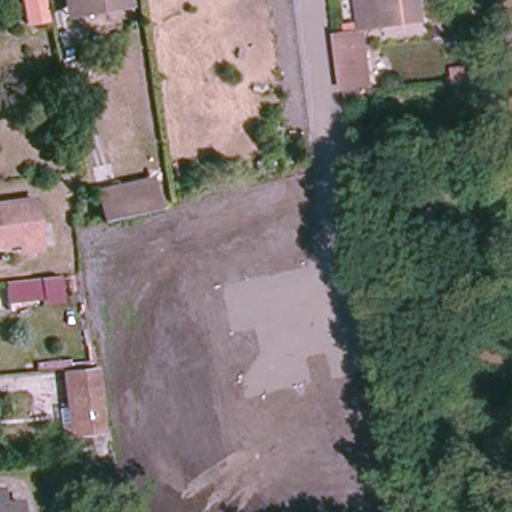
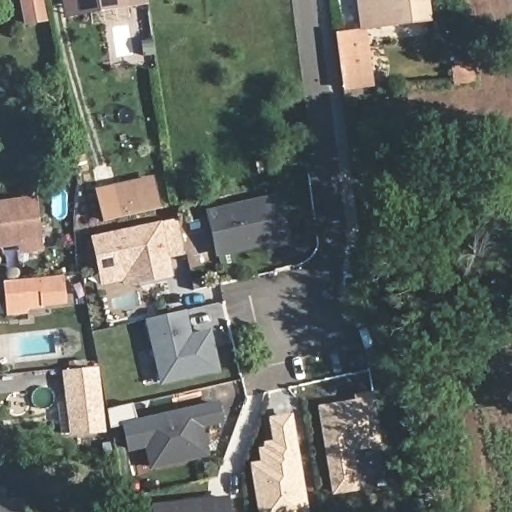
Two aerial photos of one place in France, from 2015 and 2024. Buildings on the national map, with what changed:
unchanged [(21,0),(40,0),(44,22),(25,25),(21,0)]
unchanged [(68,19),(65,0),(128,0),(129,9),(68,19)]
unchanged [(363,29),(361,29),(356,0),(424,0),(426,22),(363,29)]
unchanged [(370,89),(344,92),(342,77),(338,51),(336,33),(361,29),(363,29),(370,89)]
unchanged [(457,75),(455,59),(475,56),(476,56),(478,72),(457,75)]
demolished [(307,84),(311,107),(289,110),(285,87),(307,84)]
unchanged [(135,188),(154,184),(161,215),(142,219),(106,228),(99,195),(135,188)]
new [(283,208),(289,240),(217,258),(207,211),(264,198),(267,211),(283,208)]
unchanged [(36,201),(41,249),(19,253),(17,244),(0,246),(0,206),(36,201)]
new [(162,222),(178,218),(185,253),(169,257),(173,275),(124,286),(123,281),(100,285),(90,236),(113,231),(161,220),(162,222)]
unchanged [(49,280),(51,295),(14,298),(12,284),(49,280)]
new [(160,384),(147,318),(188,309),(192,332),(211,328),(220,371),(160,384)]
demolished [(160,363),(122,370),(118,342),(154,337),(160,363)]
unchanged [(95,372),(102,433),(71,436),(64,375),(95,372)]
new [(382,446),(354,451),(360,491),(332,495),(317,405),(355,399),(354,394),(373,391),(374,396),(382,446)]
new [(210,456),(150,468),(145,447),(127,451),(120,422),(218,399),(223,422),(204,427),(210,456)]
new [(258,447),(263,446),(262,442),(272,440),(268,417),(292,413),(310,512),(259,512),(249,462),(260,461),(258,447)]
unchanged [(2,502),(20,501),(22,512),(0,512),(0,487),(2,502)]
new [(231,512),(154,512),(153,501),(229,494),(231,512)]

